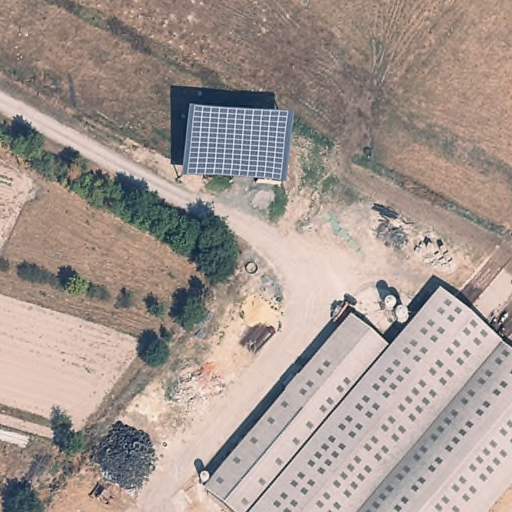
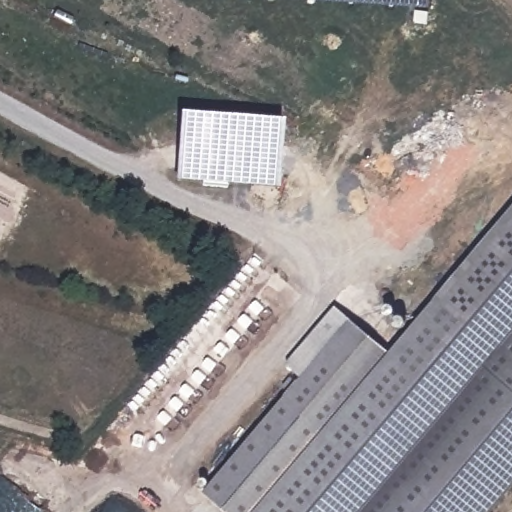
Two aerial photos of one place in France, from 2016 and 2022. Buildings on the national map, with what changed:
unchanged [(179,182),(182,115),(284,121),(278,188),(179,182)]
new [(512,360),(443,303),(395,360),(388,354),(512,209),(512,360)]
unchanged [(395,360),(443,303),(512,360),(512,486),(490,512),(269,512),(395,360)]
unchanged [(213,497),(297,398),(291,393),(298,383),(304,388),(356,325),(395,360),(269,512),(230,512),(213,497)]

